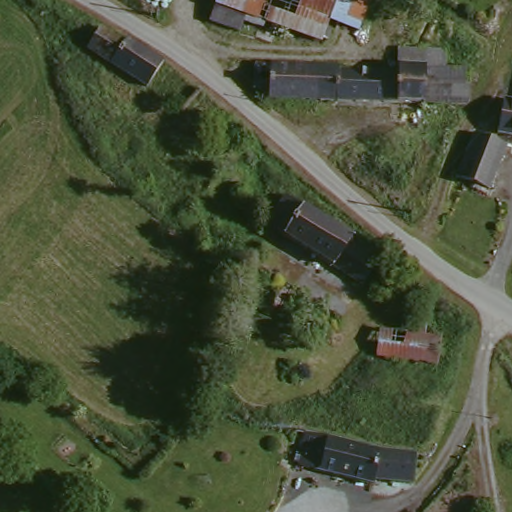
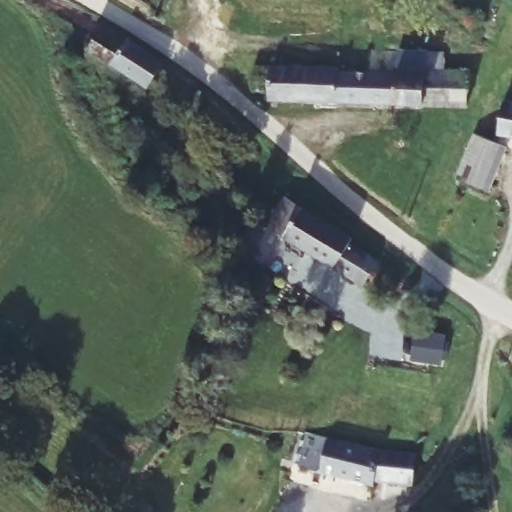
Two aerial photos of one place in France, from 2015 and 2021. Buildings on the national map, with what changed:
demolished [(318,26),(311,46),(237,21),(232,37),(203,28),(212,0),(364,0),(351,37),(318,26)]
unchanged [(164,64),(146,92),(86,54),(98,35),(119,48),(124,40),(164,64)]
unchanged [(246,66),(336,72),(336,76),(393,80),(394,53),(437,56),(436,74),(461,75),(459,109),(265,103),(262,95),(244,96),(246,66)]
unchanged [(506,132),(493,129),(499,100),(512,100),(512,144),(504,142),(506,132)]
unchanged [(500,149),(485,196),(454,186),(459,169),(471,138),(500,149)]
unchanged [(306,257),(263,230),(282,199),(326,226),(306,257)]
unchanged [(364,295),(357,290),(306,257),(326,226),(349,241),(346,246),(374,264),(364,280),(369,285),(364,295)]
unchanged [(438,328),(428,380),(364,370),(371,318),(438,328)]
unchanged [(301,443),(319,447),(374,458),(369,486),(368,490),(316,479),(294,475),(301,443)]
unchanged [(408,467),(404,490),(369,486),(374,458),(409,461),(408,467)]

